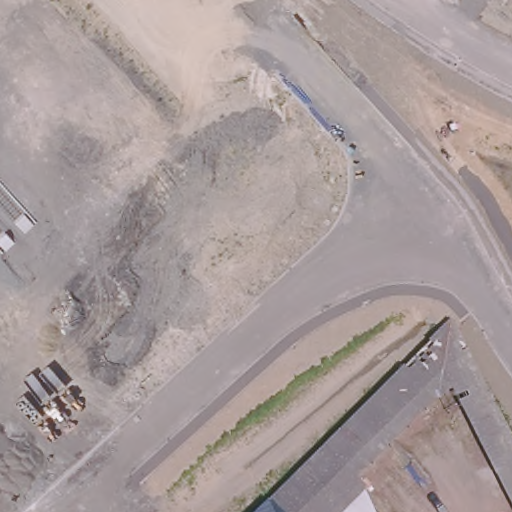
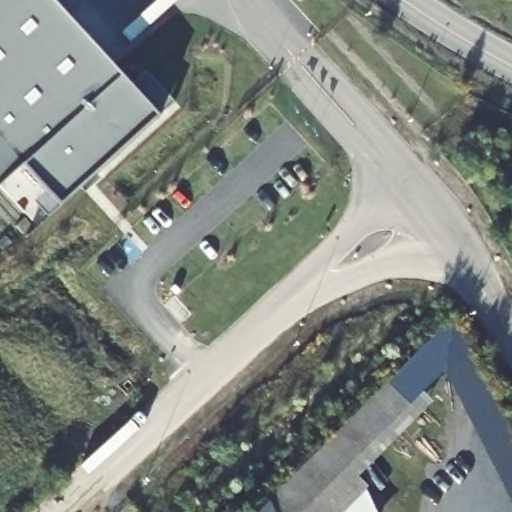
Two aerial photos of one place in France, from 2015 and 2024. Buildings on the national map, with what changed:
new [(147,75),(170,103),(60,207),(20,167),(0,184),(0,0),(47,0),(130,91),(147,75)]
unchanged [(356,476),(327,444),(452,317),(512,435),(512,506),(452,392),(356,476)]
unchanged [(344,512),(287,512),(274,498),(327,444),(367,489),(344,512)]
unchanged [(379,512),(344,512),(367,489),(370,490),(379,512)]
unchanged [(287,512),(260,512),(274,498),(287,512)]

